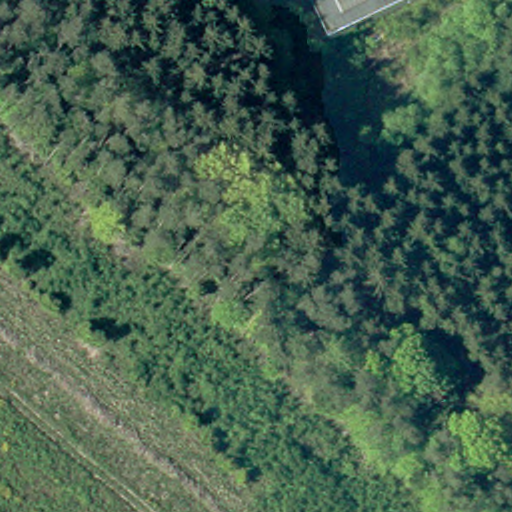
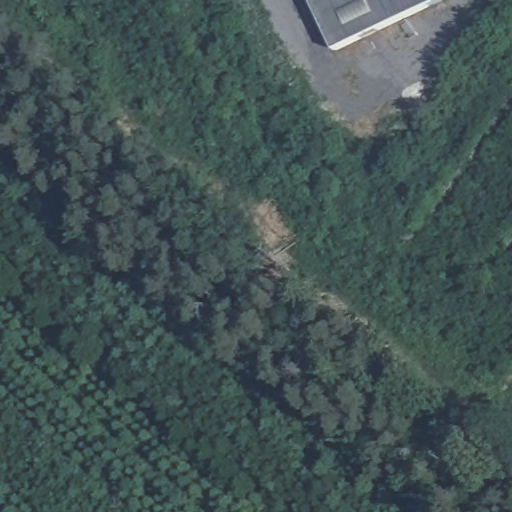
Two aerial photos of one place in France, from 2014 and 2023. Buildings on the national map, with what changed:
unchanged [(319,0),(444,0),(343,49),(319,0)]

